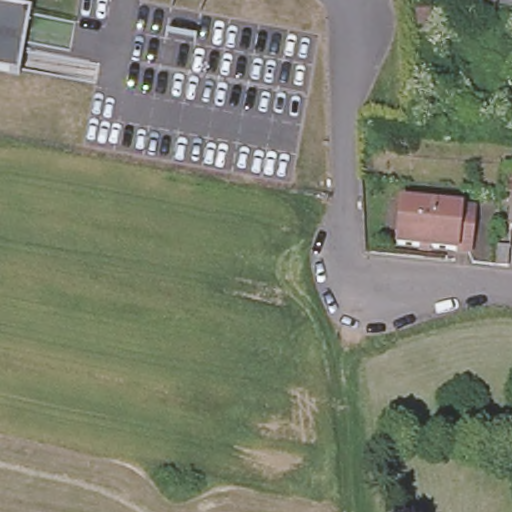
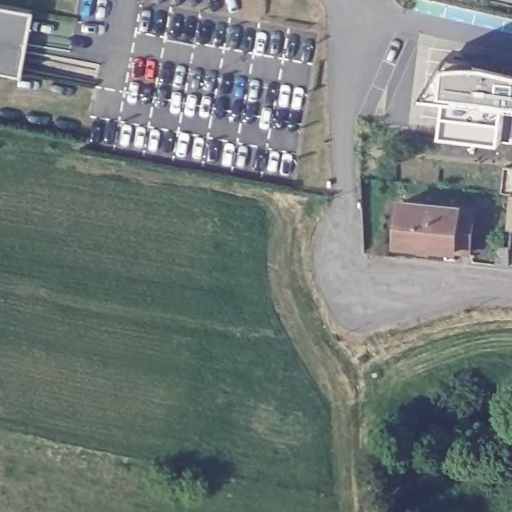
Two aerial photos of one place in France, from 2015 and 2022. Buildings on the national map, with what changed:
unchanged [(0,70),(0,3),(30,9),(18,73),(0,70)]
demolished [(414,5),(430,4),(434,63),(417,64),(414,5)]
new [(505,145),(442,136),(445,94),(427,91),(454,48),(494,58),(512,63),(512,140),(505,139),(505,145)]
unchanged [(507,195),(497,194),(499,174),(512,176),(512,230),(505,229),(507,195)]
unchanged [(468,251),(395,244),(400,203),(472,210),(468,251)]

